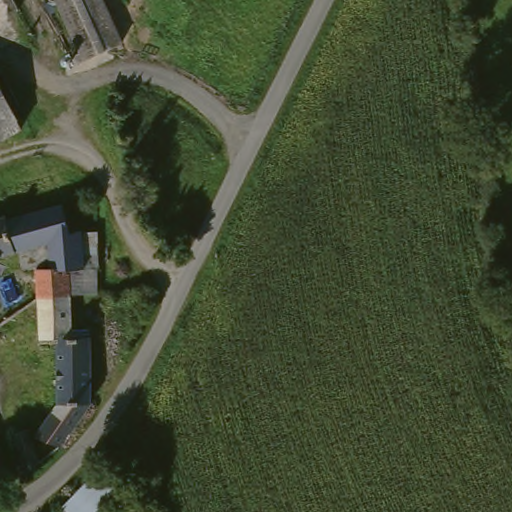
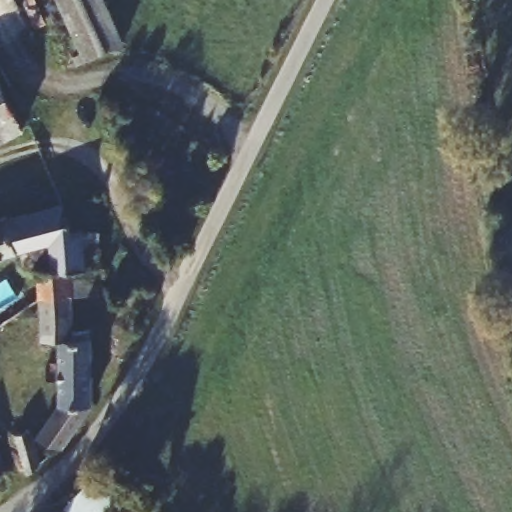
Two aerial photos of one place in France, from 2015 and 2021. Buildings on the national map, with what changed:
unchanged [(119,18),(125,39),(113,43),(85,53),(68,0),(112,0),(119,18)]
unchanged [(0,70),(27,120),(0,136),(0,70)]
unchanged [(0,256),(0,216),(9,213),(12,212),(14,216),(39,209),(74,199),(78,231),(84,230),(84,239),(84,265),(71,268),(72,290),(42,293),(42,286),(41,270),(24,273),(21,249),(0,256)]
unchanged [(104,297),(104,301),(74,302),(72,290),(71,268),(84,265),(84,239),(98,241),(104,243),(104,297)]
unchanged [(76,326),(92,324),(95,367),(97,394),(79,436),(57,429),(70,395),(66,336),(47,338),(42,296),(42,293),(72,290),(74,302),(76,326)]
unchanged [(19,463),(0,469),(0,427),(5,425),(19,463)]
unchanged [(44,427),(57,459),(41,471),(27,434),(44,427)]
unchanged [(105,465),(125,483),(98,512),(73,512),(68,508),(105,466),(105,465)]

